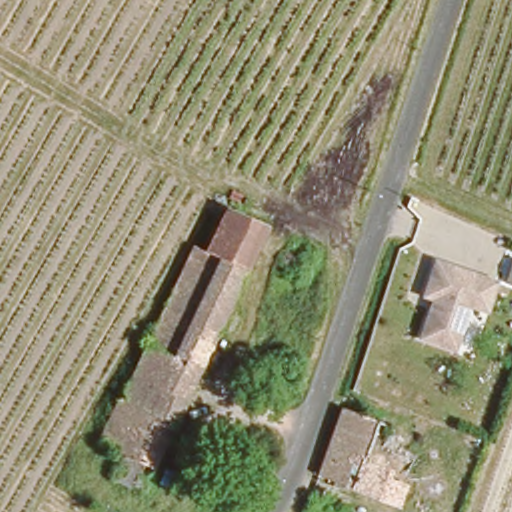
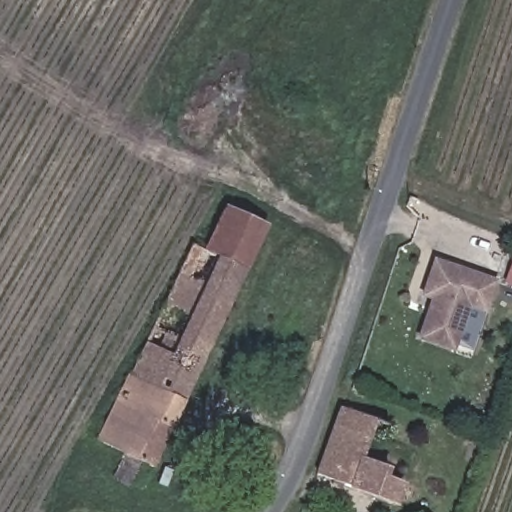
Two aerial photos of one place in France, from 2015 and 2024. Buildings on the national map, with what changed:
unchanged [(206,254),(226,211),(265,230),(245,273),(206,254)]
unchanged [(140,493),(83,466),(187,245),(206,254),(245,273),(140,493)]
unchanged [(480,312),(466,308),(455,346),(420,336),(432,298),(422,295),(433,256),(491,273),(480,312)]
unchanged [(315,475),(339,406),(386,425),(380,442),(361,492),(315,475)]
unchanged [(380,442),(416,456),(397,505),(361,492),(380,442)]

